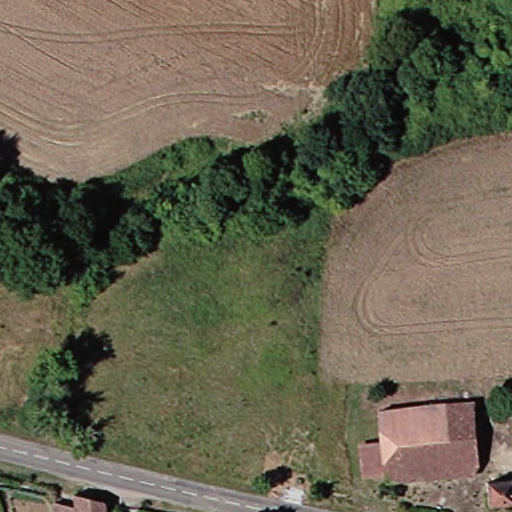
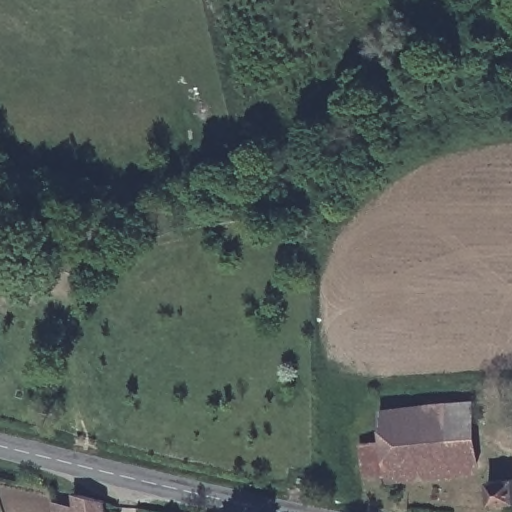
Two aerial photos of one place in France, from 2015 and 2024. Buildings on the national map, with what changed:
unchanged [(470,403),(475,474),(445,476),(439,406),(470,403)]
unchanged [(377,482),(377,476),(356,477),(354,447),(375,446),(372,412),(439,406),(445,476),(377,482)]
unchanged [(508,496),(509,501),(485,504),(482,484),(512,480),(512,495),(508,496)]
unchanged [(68,497),(104,505),(104,512),(70,512),(68,497)]

